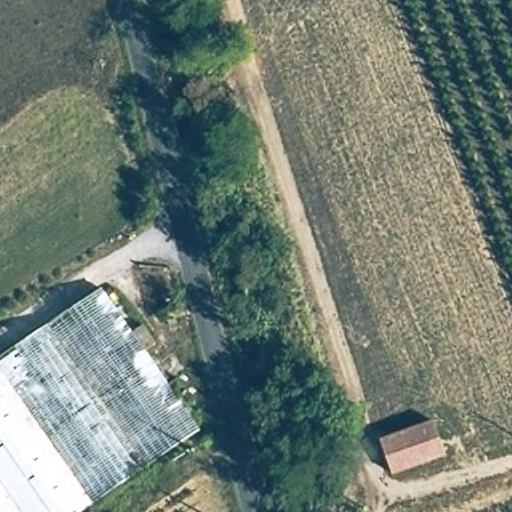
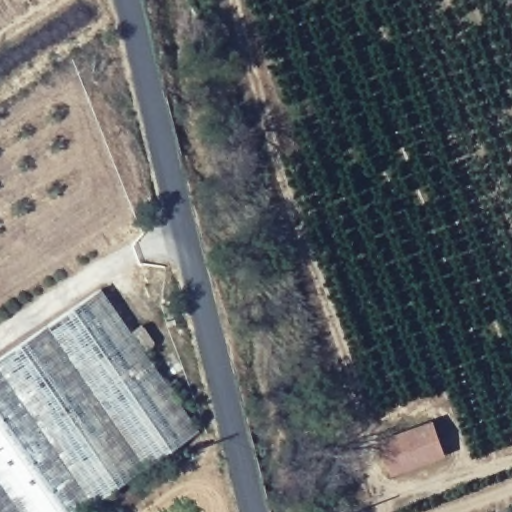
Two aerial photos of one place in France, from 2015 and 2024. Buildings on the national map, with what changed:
unchanged [(198,427),(75,512),(0,512),(0,358),(103,289),(198,427)]
unchanged [(442,456),(390,476),(379,442),(430,422),(442,456)]

